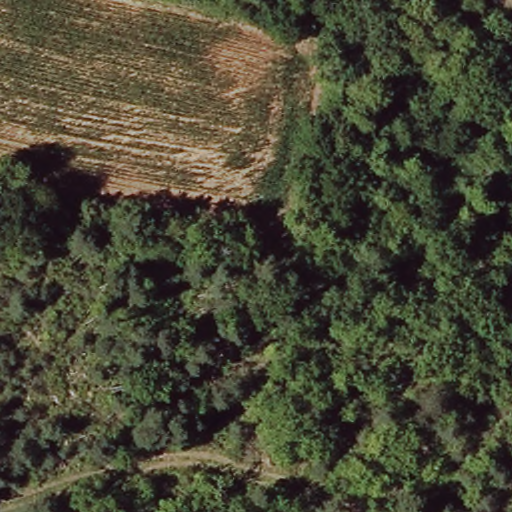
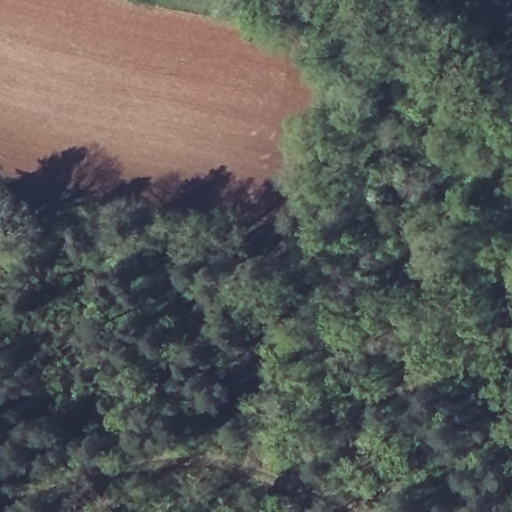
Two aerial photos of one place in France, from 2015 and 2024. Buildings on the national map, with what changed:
[]

